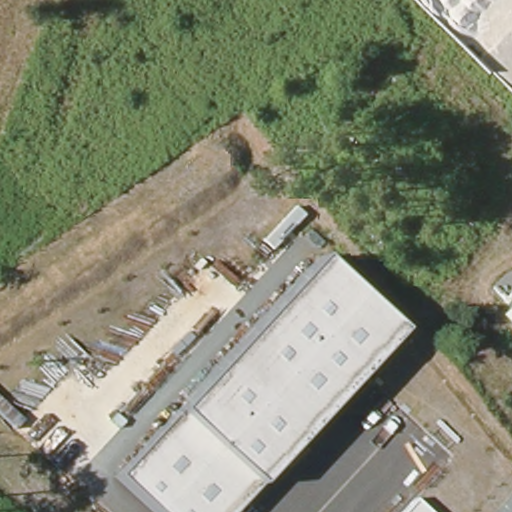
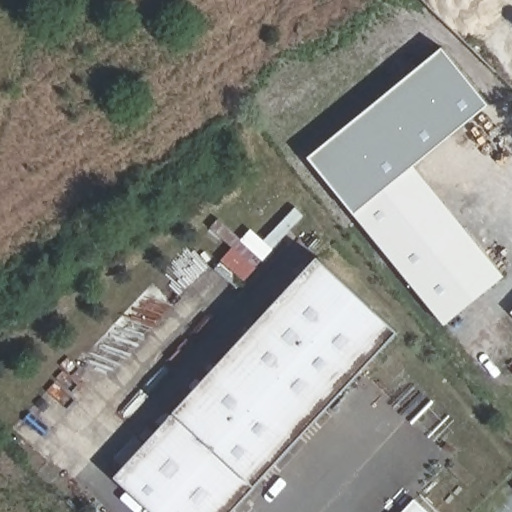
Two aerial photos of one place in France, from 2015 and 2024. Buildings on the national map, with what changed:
new [(505,276),(445,325),(311,159),(444,50),(488,106),(415,165),(505,276)]
unchanged [(259,482),(231,512),(157,512),(117,475),(321,256),(401,331),(259,482)]
unchanged [(512,312),(512,314),(511,313),(512,312)]
unchanged [(412,498),(427,512),(400,512),(412,498)]

